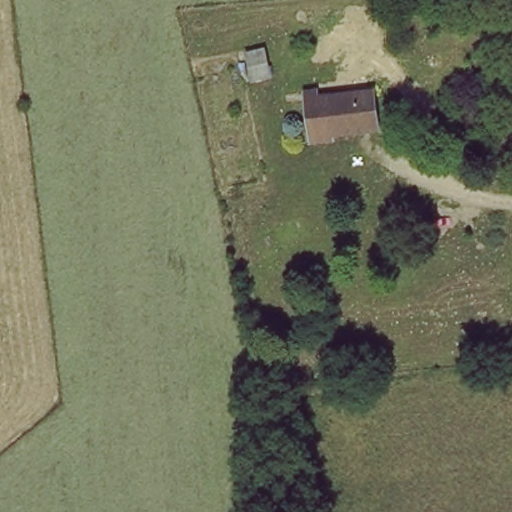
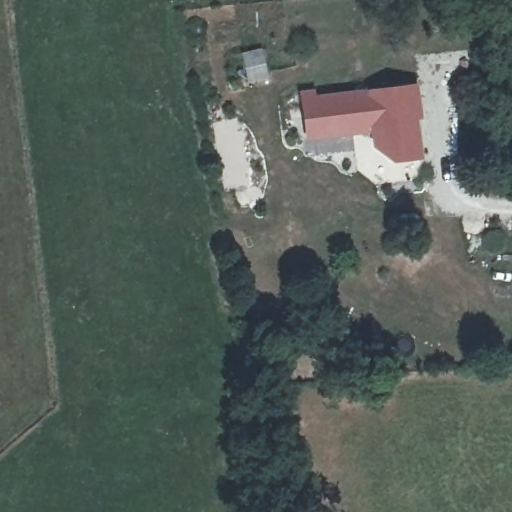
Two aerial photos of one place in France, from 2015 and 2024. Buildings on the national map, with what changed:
unchanged [(246,54),(270,51),(272,78),(249,83),(246,54)]
new [(421,160),(393,163),(372,147),(370,132),(375,131),(369,91),(417,85),(422,120),(416,121),(421,160)]
unchanged [(369,91),(375,131),(306,136),(304,95),(369,91)]

